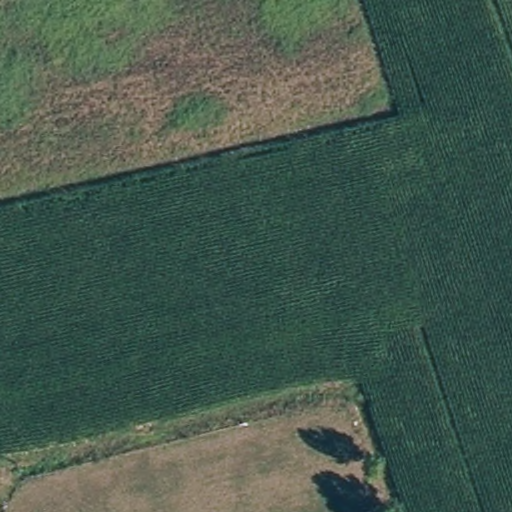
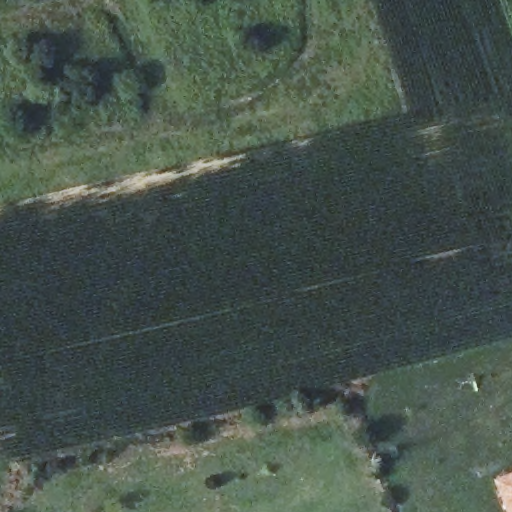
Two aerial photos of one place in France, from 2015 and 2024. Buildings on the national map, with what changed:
new [(512,471),(512,512),(507,512),(493,477),(512,471)]

